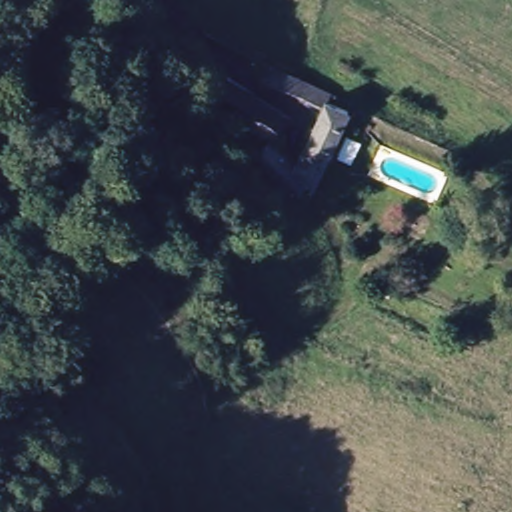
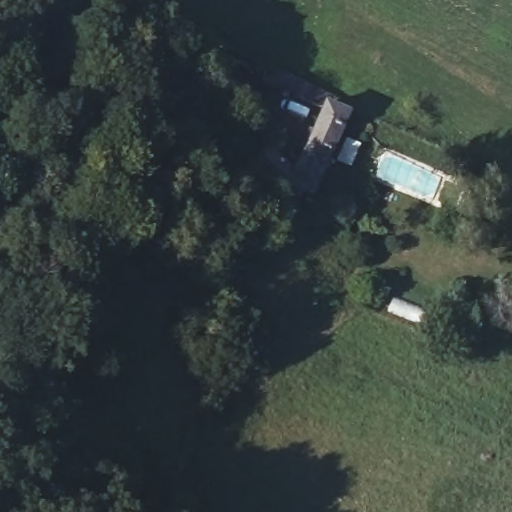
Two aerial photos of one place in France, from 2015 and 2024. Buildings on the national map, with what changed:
unchanged [(299,78),(329,89),(324,101),(321,110),(265,89),(272,68),(299,78)]
unchanged [(289,123),(268,149),(213,110),(234,84),(289,123)]
unchanged [(291,180),(321,110),(324,101),(348,109),(312,192),(290,208),(252,161),(268,149),(291,180)]

